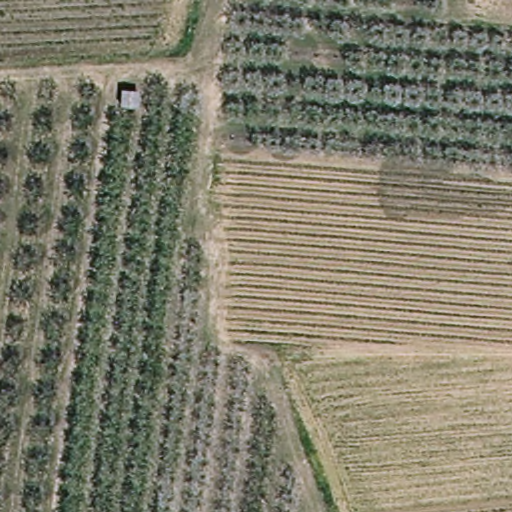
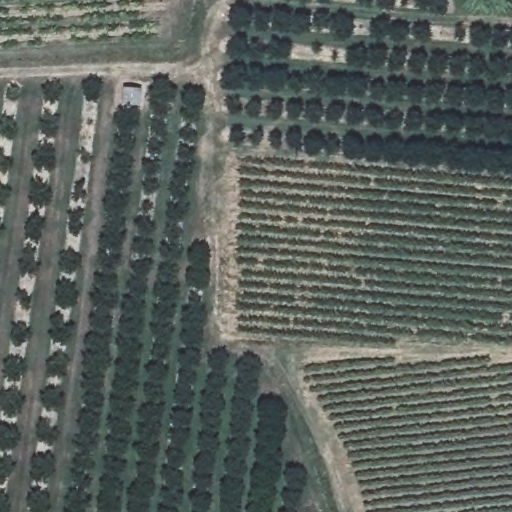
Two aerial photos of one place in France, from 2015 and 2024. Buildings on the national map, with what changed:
unchanged [(122,88),(142,90),(139,109),(119,106),(122,88)]

